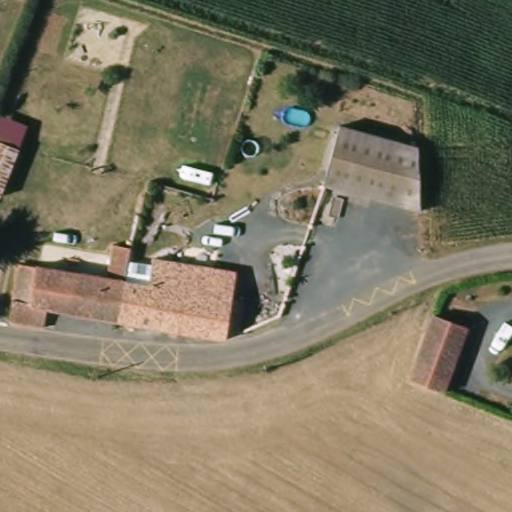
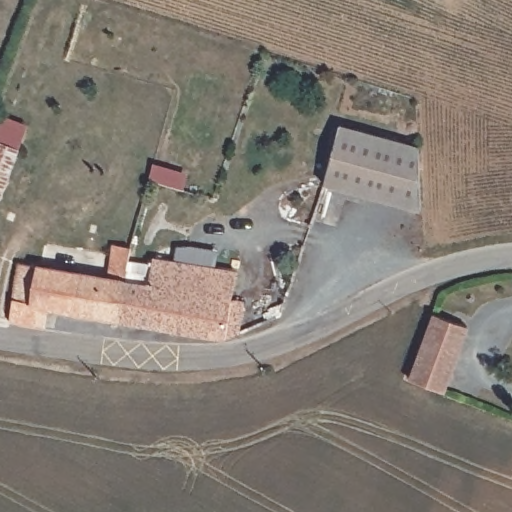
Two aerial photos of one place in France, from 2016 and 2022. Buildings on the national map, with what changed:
unchanged [(424,219),(318,182),(339,126),(421,156),(424,219)]
unchanged [(0,184),(0,150),(10,154),(0,184)]
unchanged [(122,325),(46,313),(42,334),(11,330),(21,271),(107,282),(115,249),(137,253),(130,286),(122,325)]
unchanged [(152,290),(157,263),(235,279),(230,303),(241,305),(234,342),(122,325),(130,286),(152,290)]
unchanged [(435,318),(466,329),(442,397),(411,386),(435,318)]

